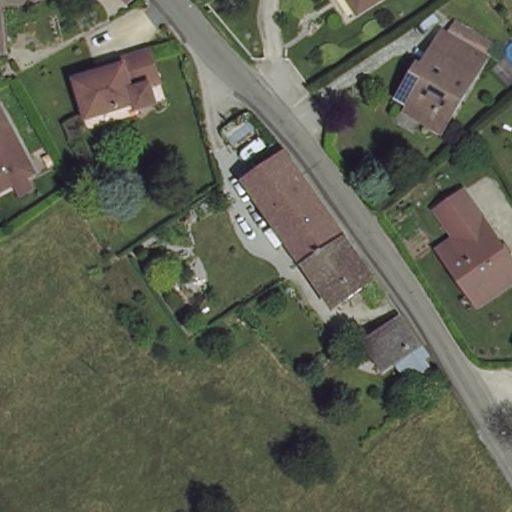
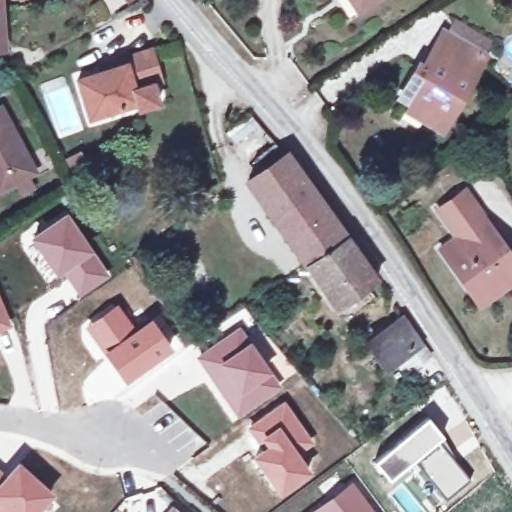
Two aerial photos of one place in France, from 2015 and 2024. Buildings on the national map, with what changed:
unchanged [(350,0),(376,0),(358,11),(350,0)]
unchanged [(432,70),(443,51),(438,49),(447,35),(487,59),(444,131),(427,122),(431,114),(404,99),(424,66),(432,70)]
unchanged [(0,38),(1,53),(0,53),(0,38)]
unchanged [(151,86),(156,106),(138,111),(136,105),(88,118),(77,79),(125,66),(123,60),(149,51),(159,83),(151,86)]
unchanged [(0,112),(3,111),(38,177),(0,198),(0,112)]
unchanged [(331,252),(311,267),(292,242),(251,185),(266,172),(256,159),(276,145),(346,241),(331,252)]
unchanged [(512,264),(512,282),(504,287),(496,275),(467,294),(437,249),(454,238),(436,211),(463,192),(512,264)]
new [(66,210),(93,249),(61,272),(55,275),(29,238),(66,210)]
unchanged [(331,252),(346,241),(376,284),(341,309),(311,267),(331,252)]
new [(93,249),(111,276),(80,298),(61,272),(93,249)]
new [(0,331),(0,295),(13,326),(0,331)]
new [(118,303),(136,327),(102,352),(84,327),(118,303)]
unchanged [(413,359),(402,366),(396,355),(386,361),(369,335),(399,314),(422,348),(437,370),(431,372),(427,366),(419,370),(413,359)]
new [(136,327),(151,316),(171,346),(125,382),(102,352),(136,327)]
new [(239,325),(279,384),(236,416),(194,357),(239,325)]
new [(284,400),(314,441),(299,453),(310,469),(278,493),(251,456),(261,448),(246,428),(284,400)]
new [(442,439),(438,442),(470,483),(446,502),(414,462),(389,481),(374,464),(427,421),(442,439)]
new [(18,460),(52,491),(33,512),(0,512),(0,468),(5,473),(18,460)]
new [(370,512),(318,512),(351,487),(370,512)]

